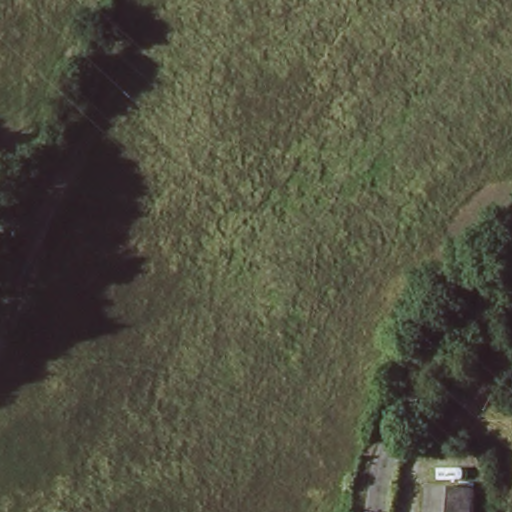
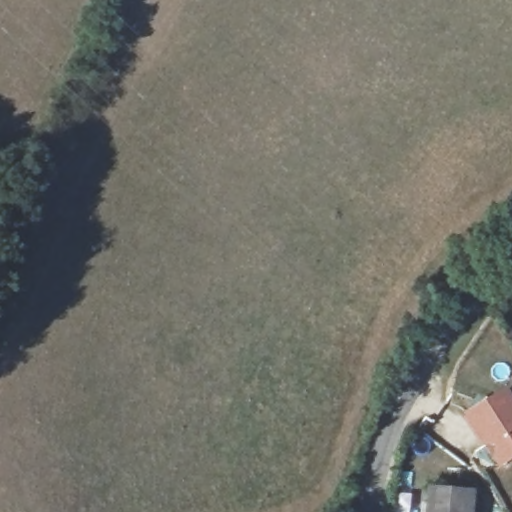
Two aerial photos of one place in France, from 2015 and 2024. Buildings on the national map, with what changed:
new [(509,387),(512,391),(512,461),(500,469),(465,416),(509,387)]
unchanged [(470,498),(469,512),(429,512),(429,494),(470,498)]

